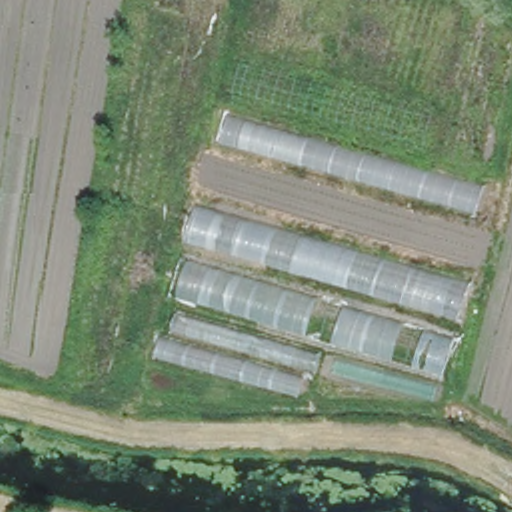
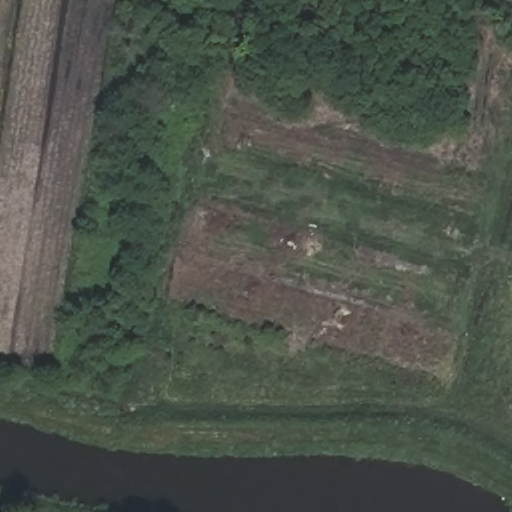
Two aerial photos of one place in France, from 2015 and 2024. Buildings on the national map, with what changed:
demolished [(170,298),(226,120),(504,195),(445,382),(170,298)]
demolished [(314,373),(303,370),(298,398),(153,358),(156,337),(169,339),(174,314),(320,354),(314,373)]

